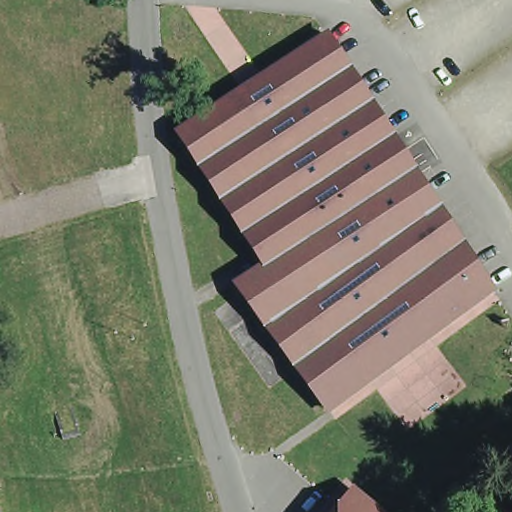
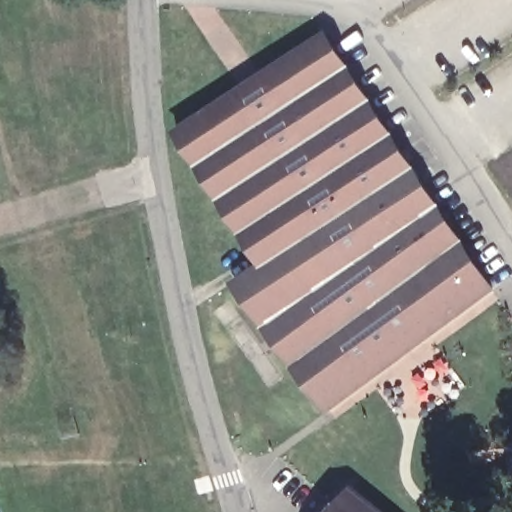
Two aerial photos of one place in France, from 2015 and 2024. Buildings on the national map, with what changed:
unchanged [(325,42),(202,124),(186,135),(179,125),(230,90),(317,32),(325,42)]
unchanged [(202,124),(325,42),(492,297),(327,418),(237,296),(265,276),(177,141),(186,135),(202,124)]
unchanged [(511,466),(509,459),(510,449),(512,444),(512,468),(511,466)]
unchanged [(371,512),(339,512),(352,496),(371,512)]

